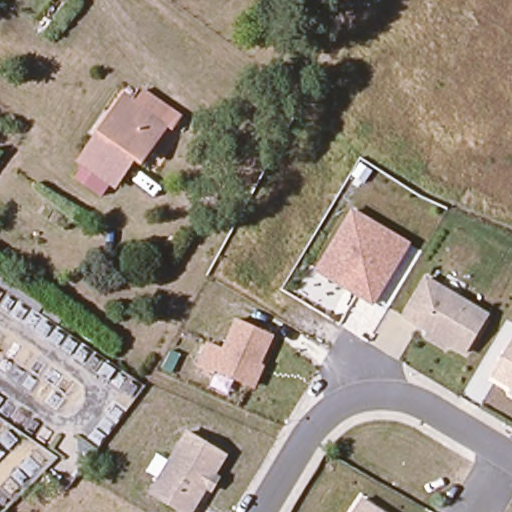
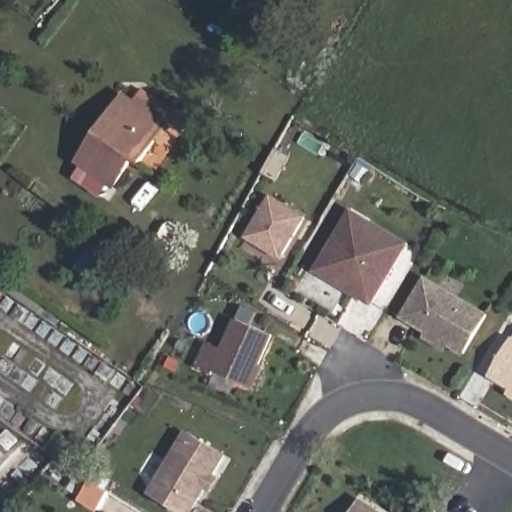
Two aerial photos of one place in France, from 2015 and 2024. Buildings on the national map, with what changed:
unchanged [(140,89),(176,115),(167,126),(162,123),(135,161),(131,157),(109,185),(75,160),(97,130),(122,95),(128,99),(132,101),(140,89)]
new [(246,237),(271,195),(308,217),(282,260),(246,237)]
unchanged [(316,272),(352,209),(411,243),(372,305),(316,272)]
unchanged [(427,335),(430,330),(405,315),(427,277),(488,314),(465,351),(447,341),(445,346),(427,335)]
unchanged [(265,366),(255,389),(198,366),(207,342),(224,348),(237,319),(274,335),(262,364),(265,366)]
unchanged [(512,390),(491,378),(512,341),(512,396),(509,395),(512,390)]
unchanged [(209,489),(194,512),(183,512),(170,503),(154,493),(192,433),(212,447),(229,457),(217,476),(222,480),(214,492),(209,489)]
unchanged [(384,512),(353,512),(362,498),(384,512)]

